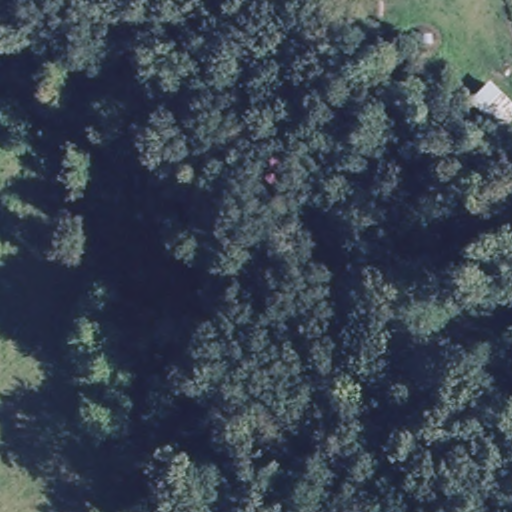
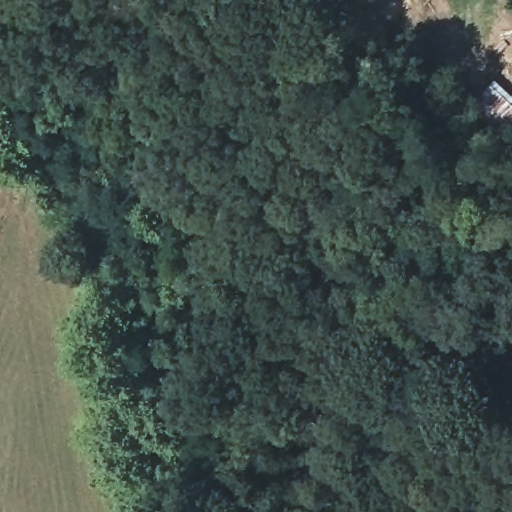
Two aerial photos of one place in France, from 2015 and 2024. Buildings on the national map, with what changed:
unchanged [(488,79),(512,101),(512,140),(509,144),(465,103),(488,79)]

